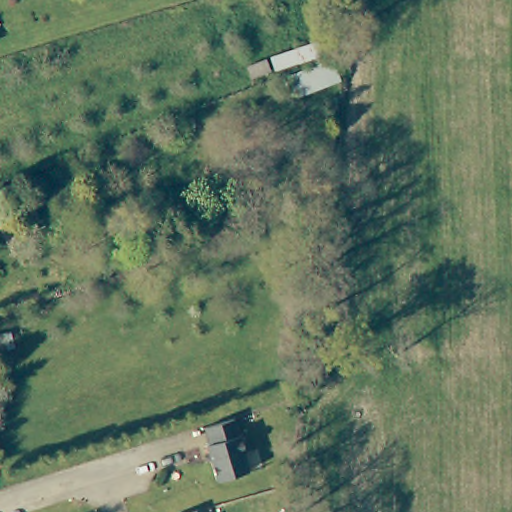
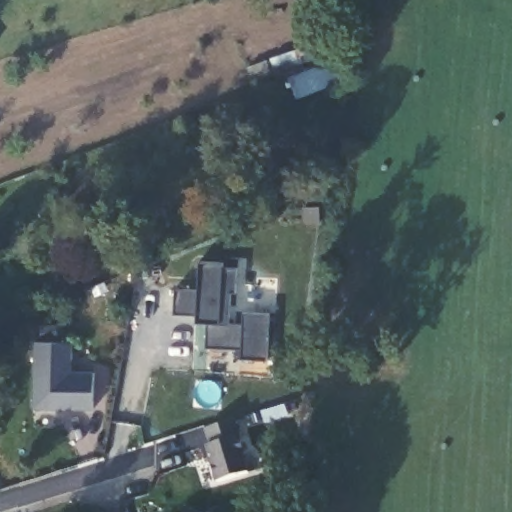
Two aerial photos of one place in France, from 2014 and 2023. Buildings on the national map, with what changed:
unchanged [(326,59),(247,81),(242,61),(317,37),(326,59)]
new [(209,323),(197,322),(197,315),(176,313),(177,289),(199,289),(200,261),(223,262),(222,267),(237,268),(236,293),(231,292),(230,322),(242,323),(244,313),(270,314),(267,359),(241,358),(241,348),(209,346),(209,323)]
unchanged [(14,349),(0,353),(0,331),(10,328),(14,349)]
new [(35,341),(72,341),(72,373),(93,371),(92,409),(32,409),(35,341)]
unchanged [(237,415),(249,453),(247,453),(252,472),(220,481),(209,446),(215,444),(209,424),(237,415)]
unchanged [(185,512),(200,508),(200,512),(185,512)]

